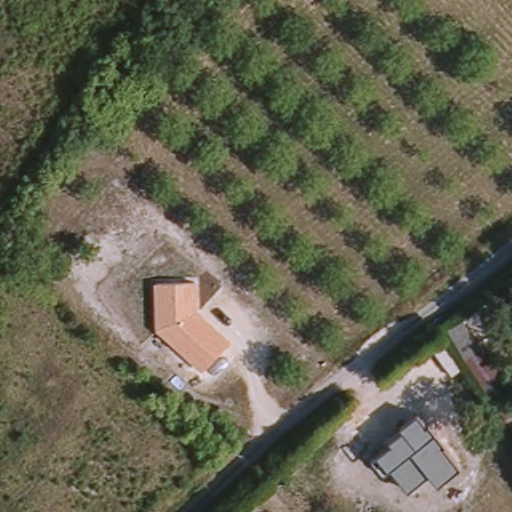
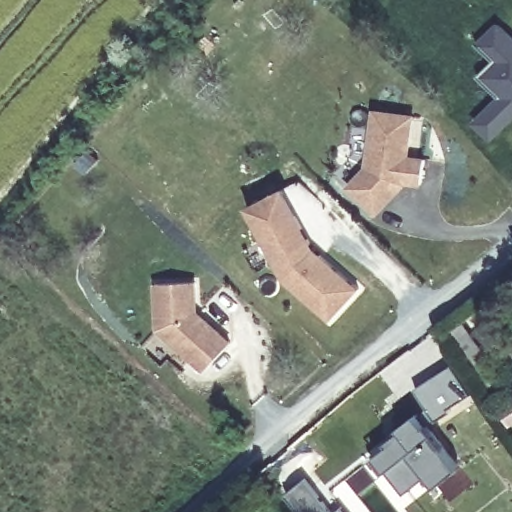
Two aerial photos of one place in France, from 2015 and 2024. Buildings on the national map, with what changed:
new [(479,74),(494,59),(477,40),(499,19),(512,33),(512,121),(492,140),(473,120),(498,96),(479,74)]
new [(364,166),(373,108),(416,114),(409,155),(426,158),(421,187),(404,185),(376,217),(346,186),(364,166)]
new [(313,247),(359,289),(329,323),(280,276),(247,207),(284,189),(313,247)]
unchanged [(197,282),(196,311),(233,344),(203,374),(157,330),(154,283),(197,282)]
unchanged [(453,346),(472,333),(512,393),(512,396),(493,408),(453,346)]
unchanged [(464,466),(439,487),(429,476),(409,493),(391,469),(387,473),(376,459),(392,446),(387,439),(416,414),(464,466)]

